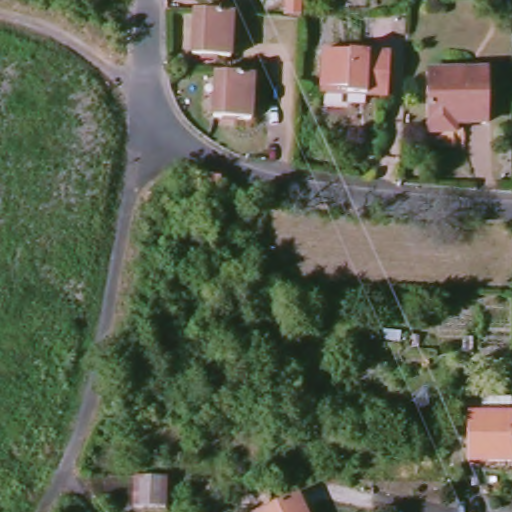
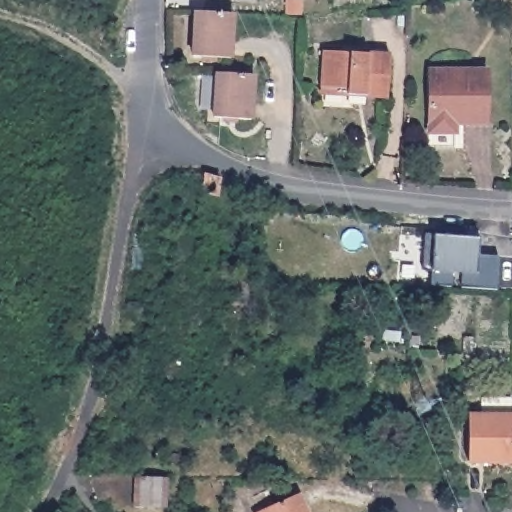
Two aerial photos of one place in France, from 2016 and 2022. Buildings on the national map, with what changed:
unchanged [(235,12),(232,60),(193,57),(196,10),(235,12)]
unchanged [(347,94),(347,87),(321,86),(322,50),(391,55),(390,97),(347,94)]
unchanged [(430,70),(487,71),(487,123),(456,123),(456,132),(430,132),(430,70)]
unchanged [(255,74),(252,119),(212,117),(215,71),(255,74)]
unchanged [(221,173),(220,197),(205,197),(206,172),(221,173)]
new [(421,241),(430,241),(430,234),(462,236),(462,242),(475,243),(475,261),(495,262),(494,295),(459,293),(460,278),(449,278),(448,293),(428,292),(428,277),(420,277),(421,241)]
unchanged [(511,452),(511,453),(511,457),(466,456),(467,411),(479,411),(480,393),(508,393),(508,411),(512,411),(512,447),(511,452)]
unchanged [(511,461),(511,457),(511,453),(511,452),(512,447),(512,461),(511,461)]
unchanged [(167,476),(167,505),(136,503),(136,475),(167,476)]
unchanged [(300,493),(308,512),(258,512),(257,512),(300,493)]

